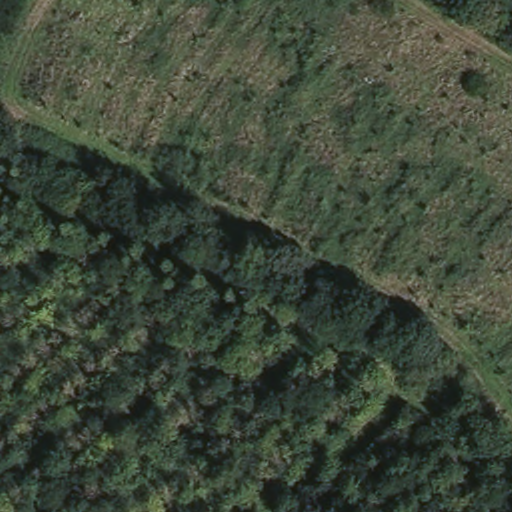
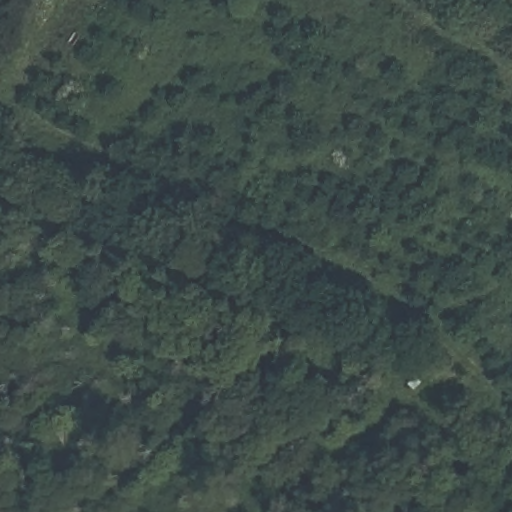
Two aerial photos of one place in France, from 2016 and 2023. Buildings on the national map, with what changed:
[]

